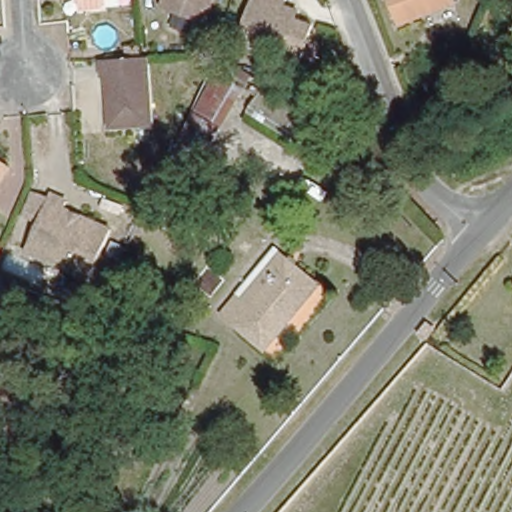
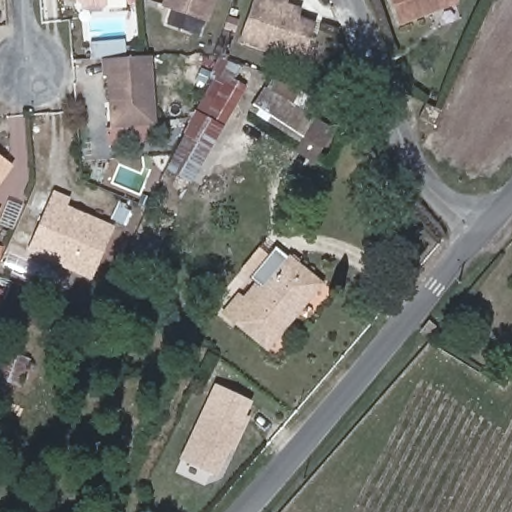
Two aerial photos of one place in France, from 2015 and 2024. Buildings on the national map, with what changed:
unchanged [(165,1),(165,0),(210,0),(205,15),(165,1)]
unchanged [(239,37),(252,0),(284,0),(284,1),(292,4),(298,6),(295,14),(311,20),(298,58),(239,37)]
unchanged [(391,0),(458,0),(399,22),(391,0)]
unchanged [(148,124),(105,126),(103,77),(99,77),(98,60),(143,57),(144,56),(148,124)]
unchanged [(225,70),(212,97),(199,92),(213,64),(225,70)]
unchanged [(242,112),(262,81),(328,126),(307,156),(242,112)]
unchanged [(411,122),(414,115),(417,109),(433,116),(427,130),(411,122)]
unchanged [(0,186),(0,151),(16,164),(0,186)]
unchanged [(71,204),(68,211),(114,232),(93,280),(30,251),(43,224),(25,216),(36,191),(54,198),(54,197),(71,204)]
unchanged [(0,211),(0,206),(3,207),(0,211)]
unchanged [(289,256),(318,280),(268,343),(239,320),(289,256)]
unchanged [(506,278),(512,268),(512,282),(506,278)]
new [(0,297),(0,291),(2,292),(0,297)]
unchanged [(19,382),(9,376),(0,392),(0,345),(32,357),(19,382)]
new [(245,416),(249,418),(234,451),(229,448),(216,477),(179,460),(214,385),(252,403),(245,416)]

